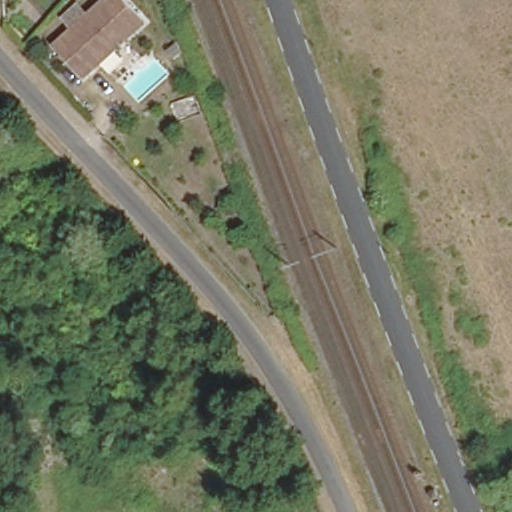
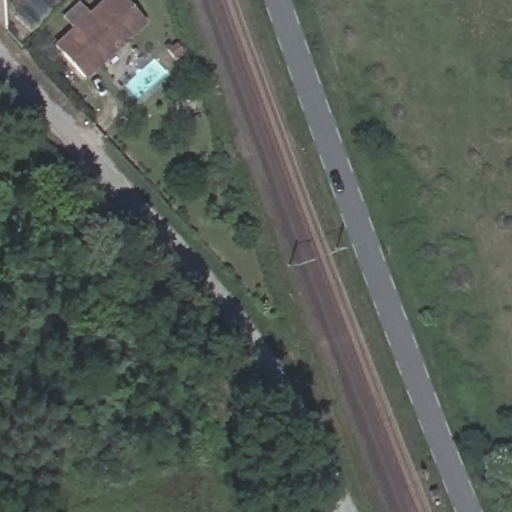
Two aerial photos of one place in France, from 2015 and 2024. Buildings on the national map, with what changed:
unchanged [(86,77),(55,48),(72,29),(63,21),(77,5),(86,14),(99,0),(123,0),(141,17),(86,77)]

